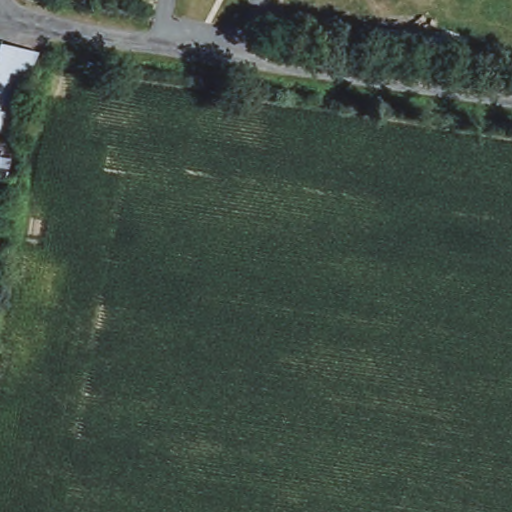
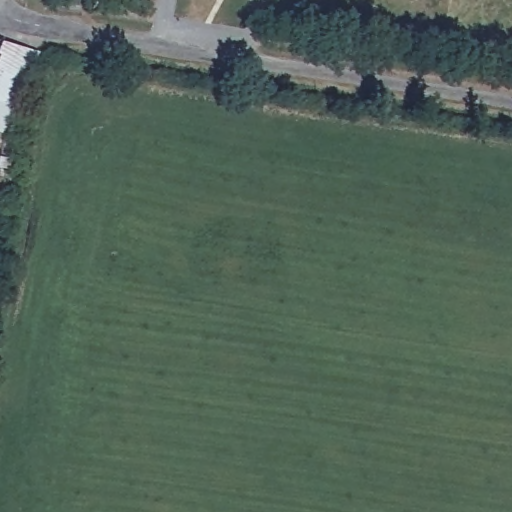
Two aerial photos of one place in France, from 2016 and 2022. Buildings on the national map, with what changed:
unchanged [(38,53),(24,85),(17,96),(9,93),(14,81),(8,79),(0,94),(0,51),(5,46),(38,53)]

